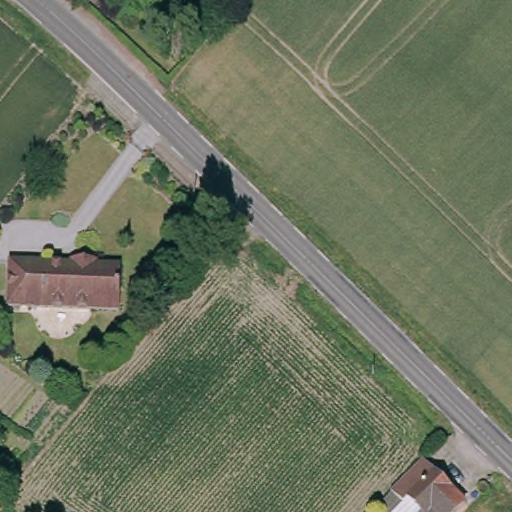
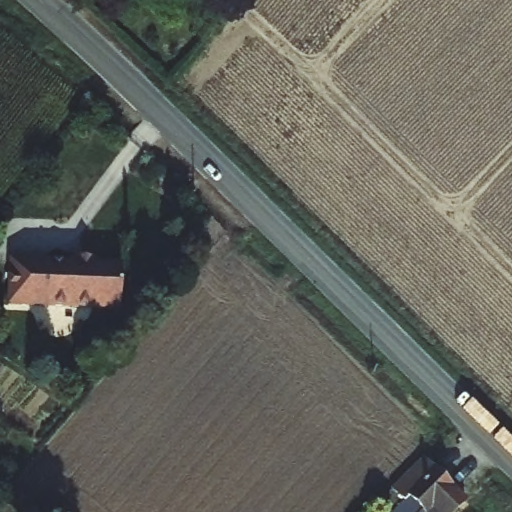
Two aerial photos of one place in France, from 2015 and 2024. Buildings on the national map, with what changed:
unchanged [(71,263),(72,260),(98,260),(98,265),(121,266),(121,310),(8,305),(8,261),(71,263)]
unchanged [(460,512),(384,512),(381,509),(396,491),(426,460),(437,471),(469,503),(460,512)]

